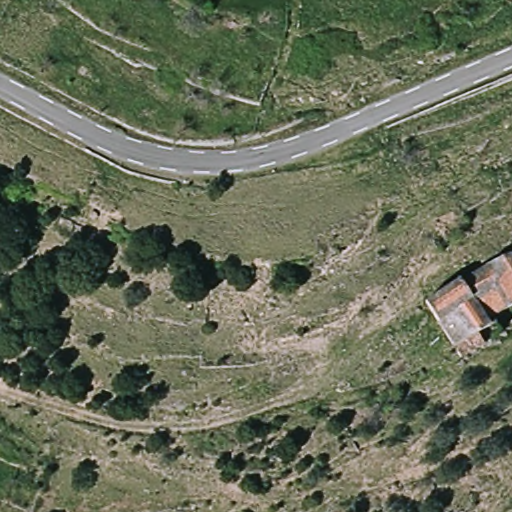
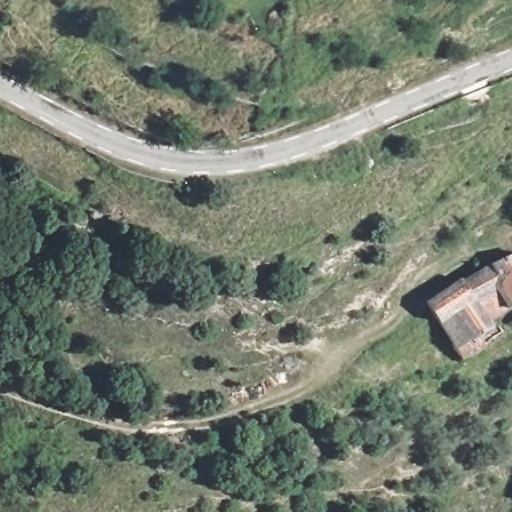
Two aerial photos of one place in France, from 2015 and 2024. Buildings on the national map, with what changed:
unchanged [(474,332),(475,338),(454,349),(427,299),(512,255),(512,302),(483,318),(485,325),(474,332)]

